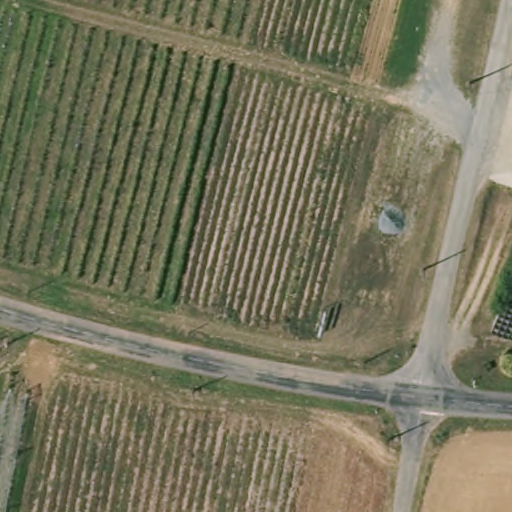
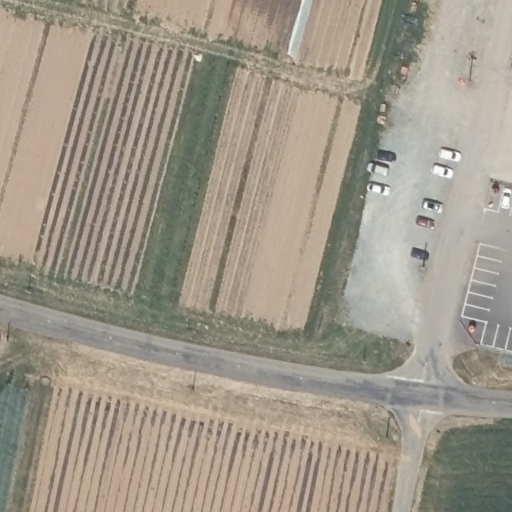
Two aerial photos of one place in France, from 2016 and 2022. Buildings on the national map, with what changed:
unchanged [(508,79),(512,63),(512,80),(508,79)]

